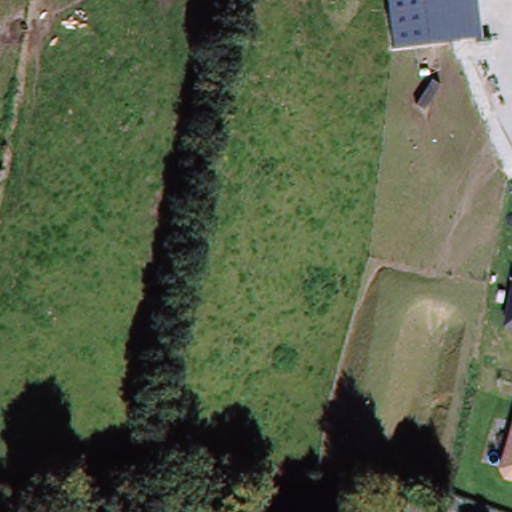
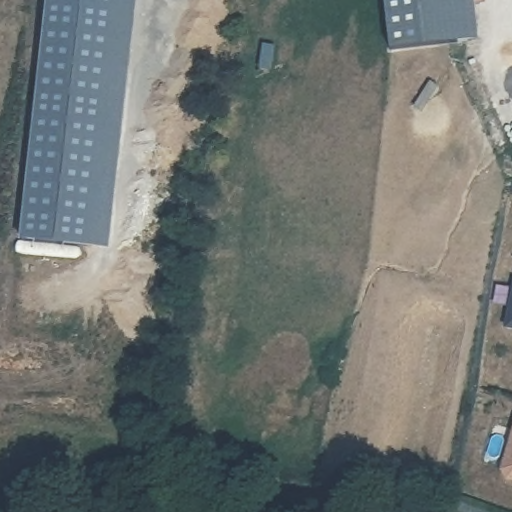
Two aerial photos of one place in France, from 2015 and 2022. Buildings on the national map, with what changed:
new [(21,244),(47,0),(136,0),(109,252),(21,244)]
unchanged [(386,0),(475,0),(480,40),(391,52),(386,0)]
unchanged [(504,330),(512,290),(512,332),(504,330)]
unchanged [(505,482),(500,472),(512,430),(512,484),(505,482)]

